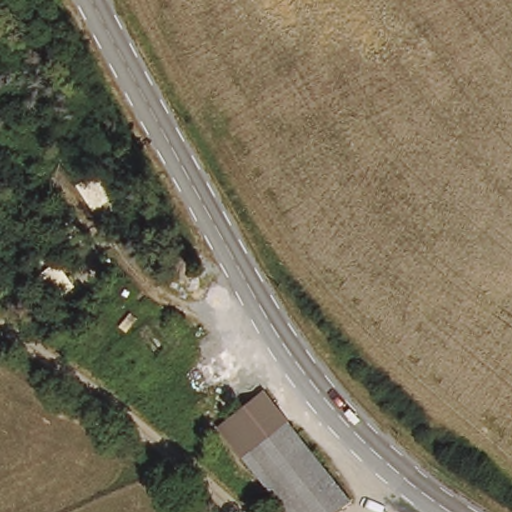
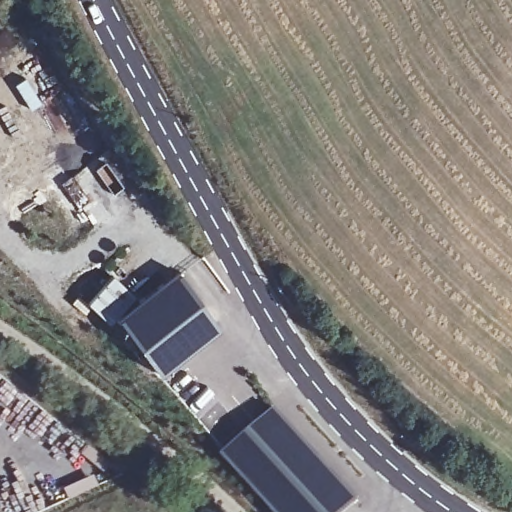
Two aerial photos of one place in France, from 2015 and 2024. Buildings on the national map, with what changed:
new [(137,297),(177,270),(218,327),(156,372),(115,318),(137,297)]
new [(113,271),(137,297),(115,318),(107,325),(83,302),(113,271)]
unchanged [(343,512),(308,512),(233,417),(266,391),(355,503),(343,512)]
unchanged [(289,512),(221,427),(233,417),(308,512),(289,512)]

